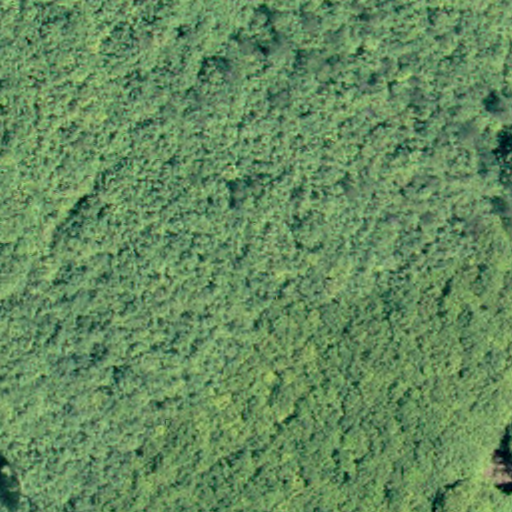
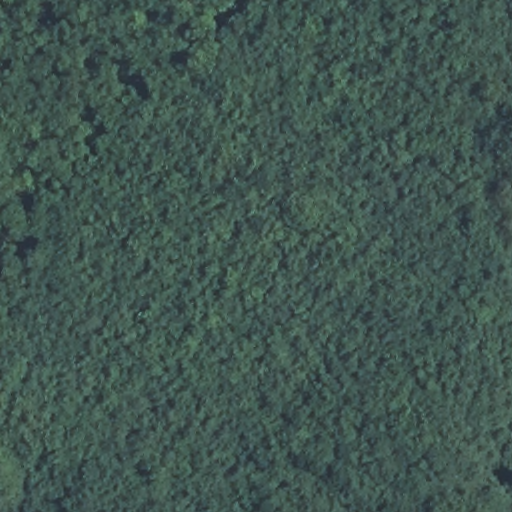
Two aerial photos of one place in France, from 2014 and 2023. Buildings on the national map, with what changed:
[]

